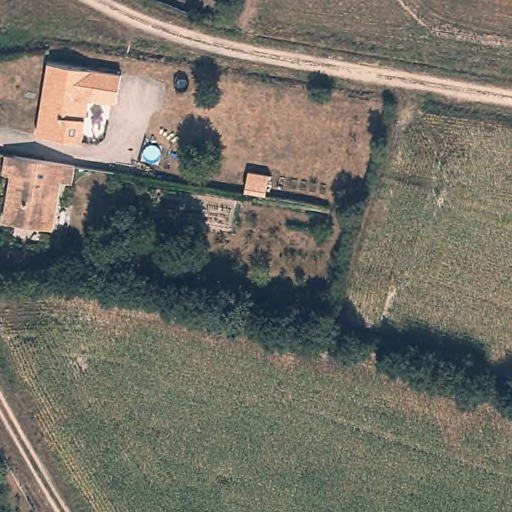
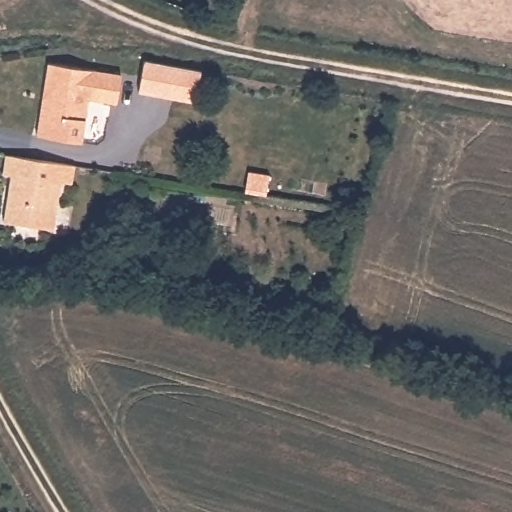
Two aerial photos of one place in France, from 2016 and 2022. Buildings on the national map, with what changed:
new [(144,60),(202,69),(197,101),(138,91),(144,60)]
unchanged [(120,76),(114,104),(87,99),(79,144),(36,136),(48,64),(120,76)]
unchanged [(77,161),(74,180),(64,179),(56,219),(3,210),(9,166),(1,164),(4,149),(77,161)]

